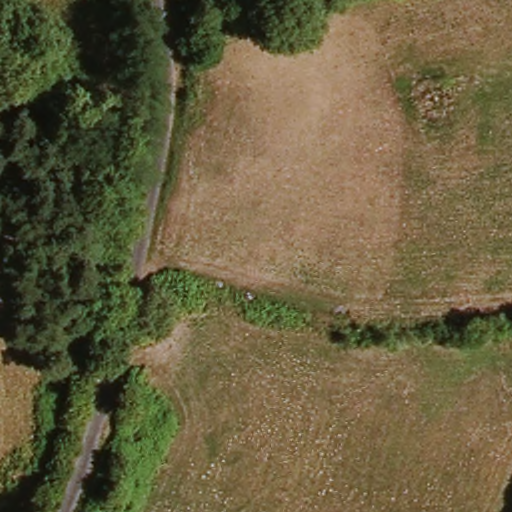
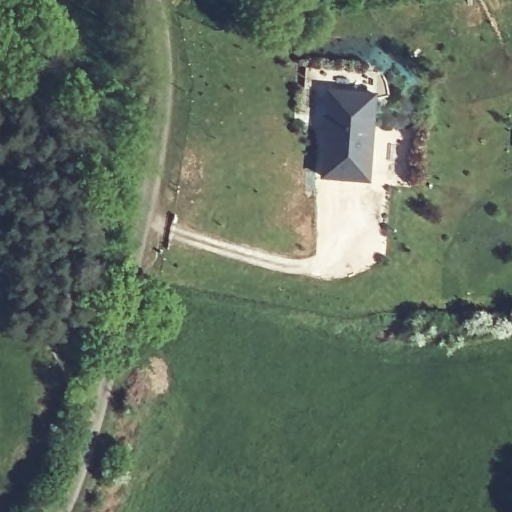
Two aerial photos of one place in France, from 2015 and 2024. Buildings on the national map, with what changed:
new [(320,177),(327,87),(378,92),(371,181),(320,177)]

